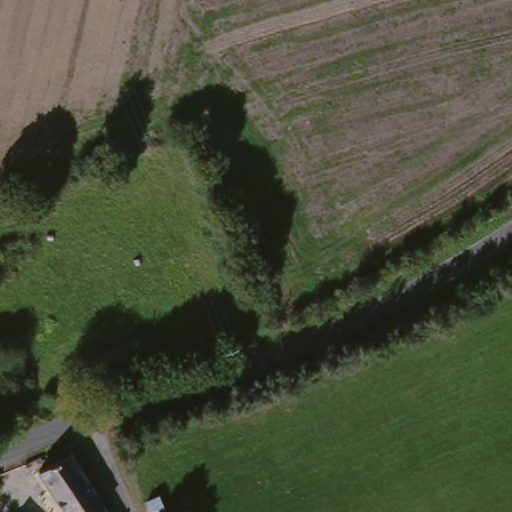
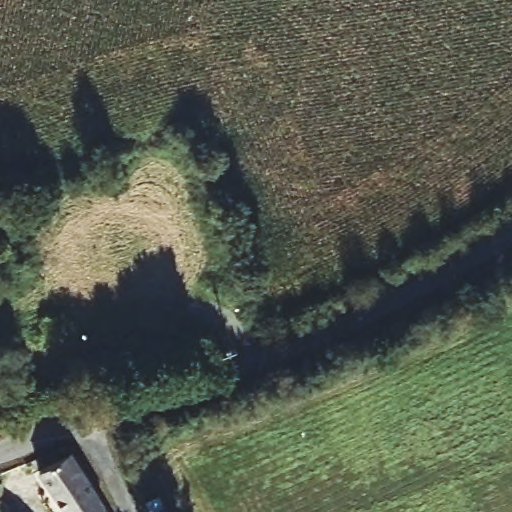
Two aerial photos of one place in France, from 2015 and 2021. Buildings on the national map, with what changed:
unchanged [(90,352),(123,342),(131,340),(135,358),(127,361),(94,371),(90,352)]
unchanged [(118,512),(75,512),(44,471),(78,450),(116,506),(118,512)]

